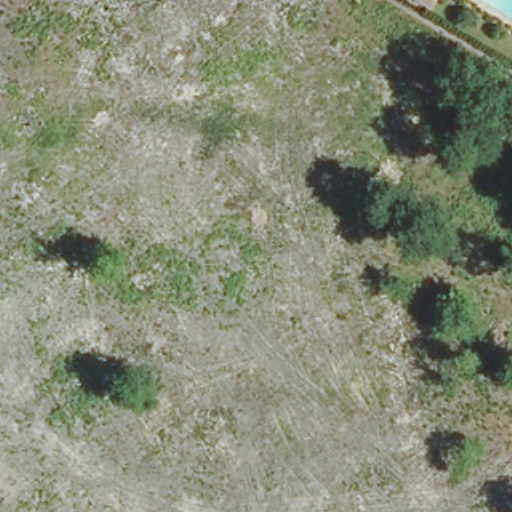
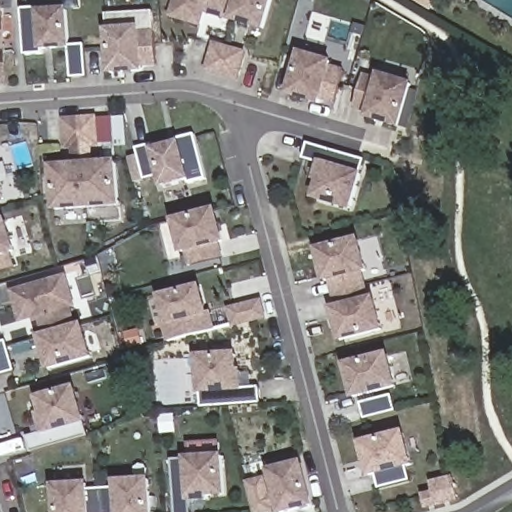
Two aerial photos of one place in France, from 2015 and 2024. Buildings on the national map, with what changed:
new [(169,18),(174,0),(273,0),(265,30),(230,21),(205,13),(201,27),(169,18)]
new [(0,4),(2,9),(6,84),(0,84),(0,4)]
new [(25,56),(21,10),(38,7),(39,11),(68,8),(71,44),(84,44),(86,76),(70,78),(68,50),(41,51),(43,54),(25,56)]
new [(140,31),(154,30),(157,65),(143,66),(144,71),(109,74),(105,29),(139,26),(140,31)]
new [(238,82),(204,72),(212,41),(246,51),(238,82)]
new [(334,105),(321,101),(321,105),(286,96),(299,51),(332,61),(330,66),(344,69),(334,105)]
new [(376,76),(377,73),(411,83),(399,127),(364,117),(365,112),(353,109),(362,74),(376,76)]
new [(65,150),(63,118),(96,116),(99,146),(93,147),(94,161),(116,160),(120,206),(52,210),(50,166),(70,164),(71,149),(65,150)]
new [(135,149),(151,145),(151,149),(180,141),(179,138),(194,135),(206,179),(188,183),(187,181),(160,189),(157,176),(143,180),(135,149)]
new [(358,172),(362,173),(352,210),(312,199),(316,181),(313,181),(317,163),(302,159),(306,143),(364,159),(358,172)]
new [(0,187),(0,171),(5,186),(0,187)]
new [(0,201),(0,194),(4,200),(0,201)]
new [(188,266),(186,253),(181,255),(171,219),(216,208),(225,243),(218,244),(224,257),(188,266)]
new [(0,220),(6,219),(15,252),(10,254),(15,267),(0,271),(0,220)]
new [(365,298),(374,296),(382,330),(339,342),(330,307),(323,281),(315,248),(358,238),(367,272),(359,274),(365,298)]
new [(33,319),(18,323),(9,290),(66,274),(76,309),(71,310),(75,326),(83,324),(93,360),(48,373),(36,336),(33,319)]
new [(216,330),(167,343),(162,326),(165,325),(157,295),(201,284),(209,315),(216,330)]
new [(226,308),(261,299),(265,318),(231,327),(226,308)]
new [(0,343),(6,341),(14,371),(0,375),(0,343)]
new [(353,400),(343,363),(388,351),(397,388),(353,400)]
new [(243,389),(258,388),(259,403),(201,408),(199,394),(197,356),(238,353),(239,369),(242,370),(243,389)]
new [(41,435),(35,414),(41,413),(36,397),(76,386),(86,423),(84,423),(89,437),(30,454),(26,438),(41,435)]
new [(390,395),(395,410),(362,419),(359,403),(390,395)]
new [(408,480),(377,489),(373,475),(366,477),(358,442),(403,431),(412,466),(403,468),(408,480)]
new [(210,497),(210,501),(188,502),(189,512),(175,512),(172,461),(184,460),(184,456),(224,453),(227,497),(210,497)]
new [(273,492),(267,470),(302,461),(313,507),(293,512),(277,512),(276,507),(271,508),(272,512),(270,512),(252,512),(244,481),(264,476),(268,493),(273,492)]
new [(432,491),(429,481),(451,475),(458,501),(424,510),(420,495),(432,491)]
new [(52,485),(89,483),(89,490),(114,488),(113,481),(151,478),(153,512),(54,512),(52,485)]

